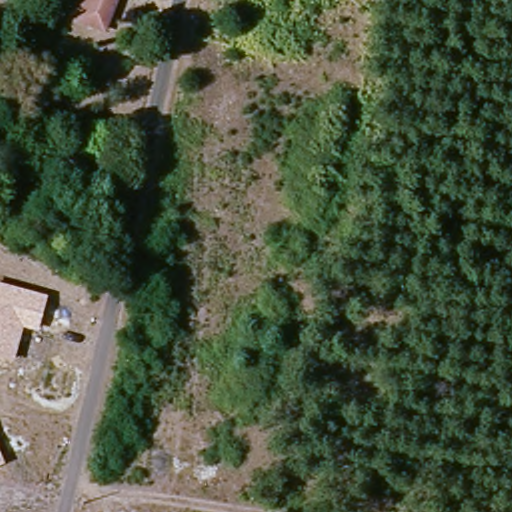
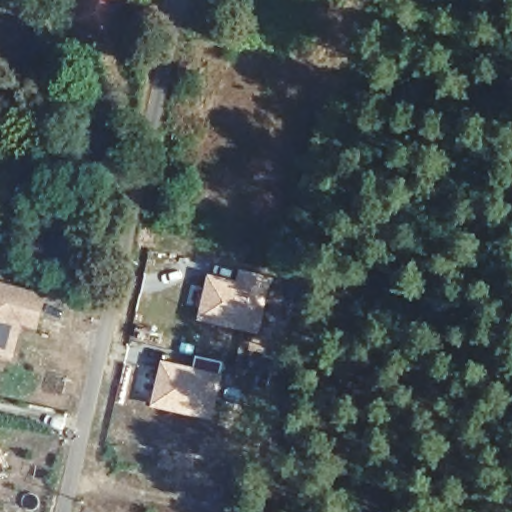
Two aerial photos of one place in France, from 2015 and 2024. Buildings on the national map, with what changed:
unchanged [(97,39),(60,26),(69,0),(112,0),(97,39)]
new [(208,274),(235,282),(240,268),(275,277),(260,335),(197,320),(208,274)]
unchanged [(0,357),(0,284),(50,296),(40,332),(25,329),(15,360),(0,357)]
new [(161,360),(193,367),(195,355),(226,361),(214,421),(150,407),(161,360)]
unchanged [(5,463),(0,466),(0,450),(5,463)]

